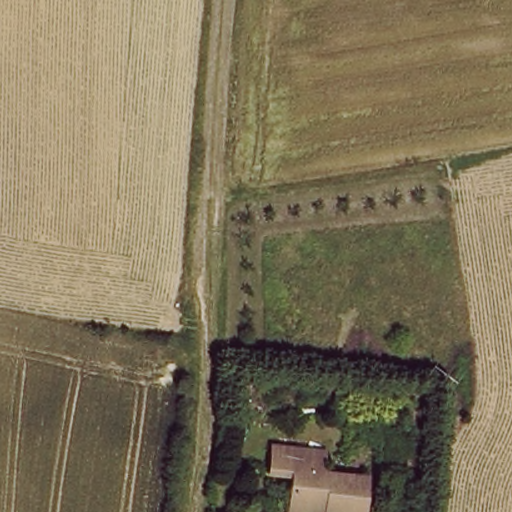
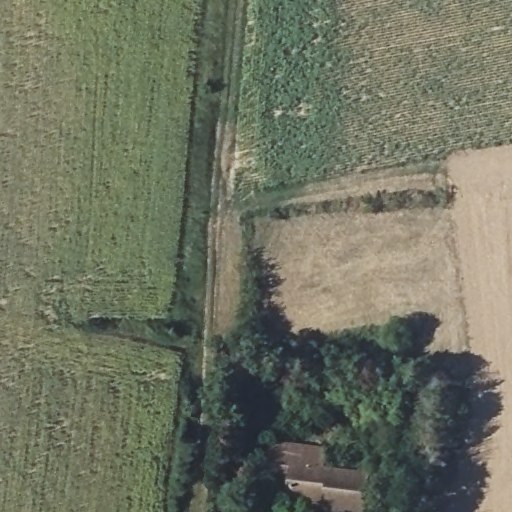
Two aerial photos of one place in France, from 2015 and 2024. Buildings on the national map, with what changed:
unchanged [(288,512),(291,481),(268,480),(274,445),(330,451),(328,473),(374,476),(369,512),(288,512)]

